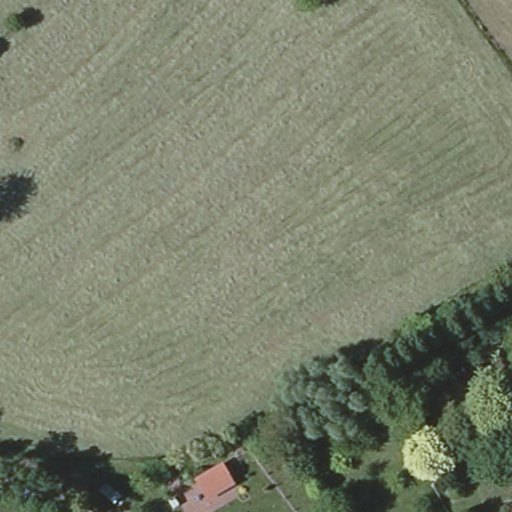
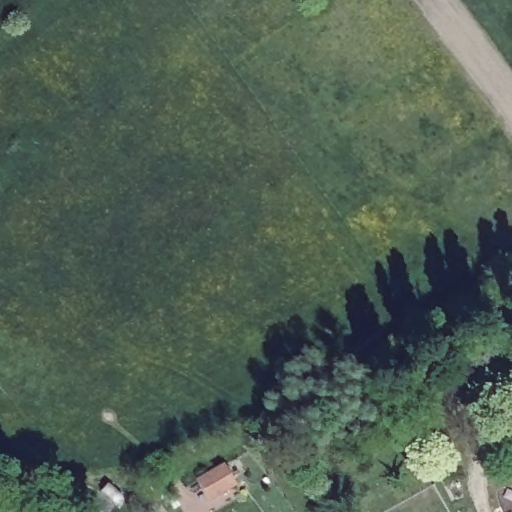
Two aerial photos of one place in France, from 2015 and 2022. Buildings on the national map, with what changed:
unchanged [(226,468),(237,485),(214,500),(203,483),(226,468)]

